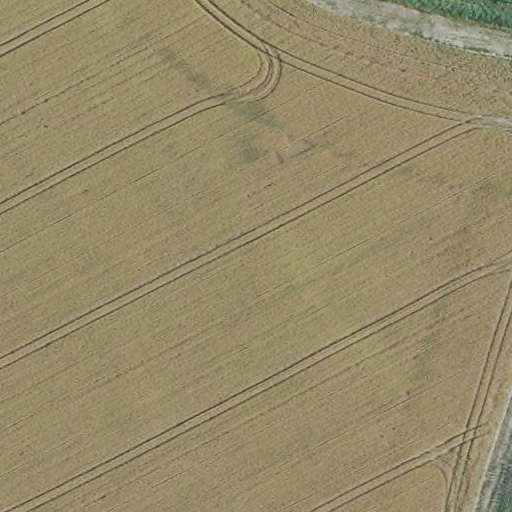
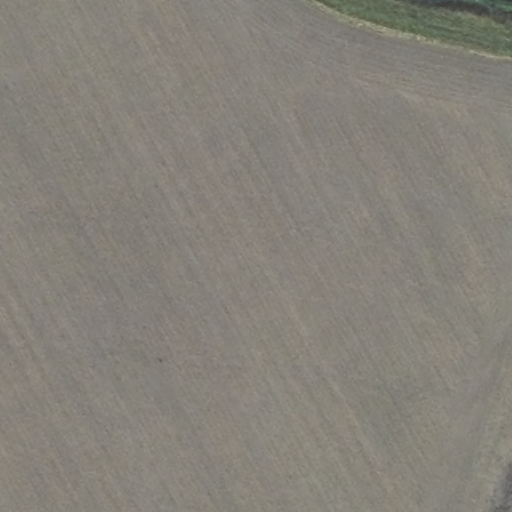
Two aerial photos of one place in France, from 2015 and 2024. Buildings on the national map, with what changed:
[]

